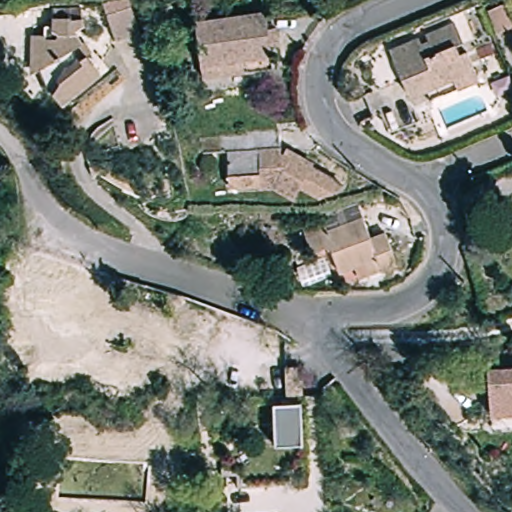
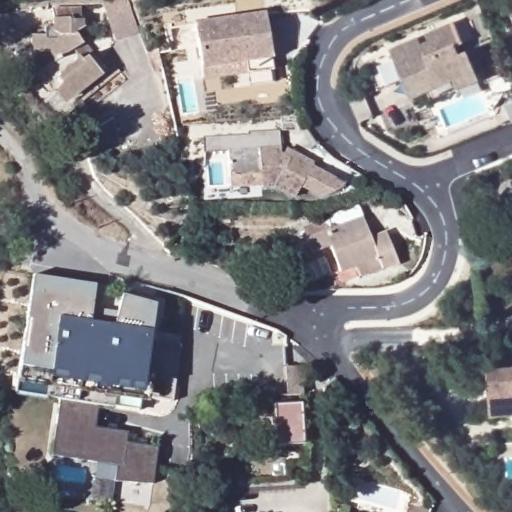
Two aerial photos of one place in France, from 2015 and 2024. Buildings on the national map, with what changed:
unchanged [(511,15),(506,0),(512,0),(512,15),(511,15)]
unchanged [(204,68),(197,24),(267,14),(270,31),(277,30),(278,46),(272,47),(275,70),(249,74),(205,80),(204,68)]
unchanged [(425,86),(408,93),(402,77),(391,47),(418,37),(422,45),(430,42),(425,32),(453,21),(462,38),(455,41),(459,50),(466,47),(477,76),(457,84),(430,95),(425,86)]
unchanged [(74,44),(67,49),(75,60),(77,59),(83,68),(75,77),(87,93),(58,117),(46,104),(41,108),(32,86),(26,85),(26,52),(36,52),(36,42),(45,43),(45,36),(62,33),(63,37),(73,36),(74,44)]
new [(512,100),(512,119),(505,104),(512,100)]
unchanged [(277,154),(285,157),(288,149),(311,162),(310,166),(341,182),(337,190),(318,198),(297,187),(290,199),(268,187),(255,187),(253,179),(227,182),(225,153),(246,152),(245,135),(276,134),(277,154)]
unchanged [(231,224),(192,224),(192,213),(230,214),(231,224)]
unchanged [(363,259),(340,268),(330,242),(313,249),(308,235),(365,214),(372,235),(386,230),(398,259),(382,266),(367,271),(363,259)]
demolished [(103,292),(117,294),(116,302),(131,302),(129,328),(112,328),(112,340),(90,338),(88,353),(87,373),(35,371),(37,333),(57,335),(58,317),(62,317),(62,311),(52,306),(40,307),(29,305),(35,247),(105,269),(103,292)]
new [(148,397),(147,402),(138,401),(138,412),(97,406),(93,429),(127,433),(125,444),(156,448),(151,484),(113,483),(115,465),(52,455),(59,399),(15,393),(17,380),(19,367),(32,277),(95,286),(91,311),(117,316),(123,296),(153,305),(149,339),(180,345),(172,402),(148,397)]
demolished [(30,358),(7,357),(7,336),(32,338),(30,358)]
unchanged [(485,406),(485,365),(512,364),(512,406),(485,406)]
unchanged [(277,369),(282,368),(292,367),(294,382),(295,397),(280,398),(277,369)]
unchanged [(268,408),(297,406),(301,445),(273,448),(268,408)]
unchanged [(227,420),(217,419),(217,411),(227,412),(227,420)]
unchanged [(203,440),(195,440),(195,430),(203,429),(203,440)]

